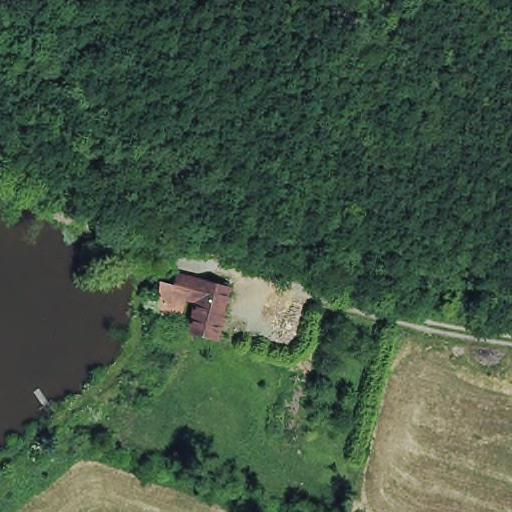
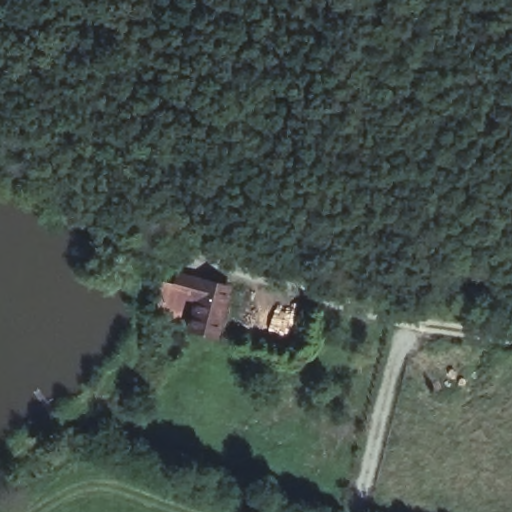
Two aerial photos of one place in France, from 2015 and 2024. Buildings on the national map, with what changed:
unchanged [(175,283),(177,270),(235,282),(223,341),(187,333),(193,304),(183,302),(177,328),(152,321),(158,280),(175,283)]

